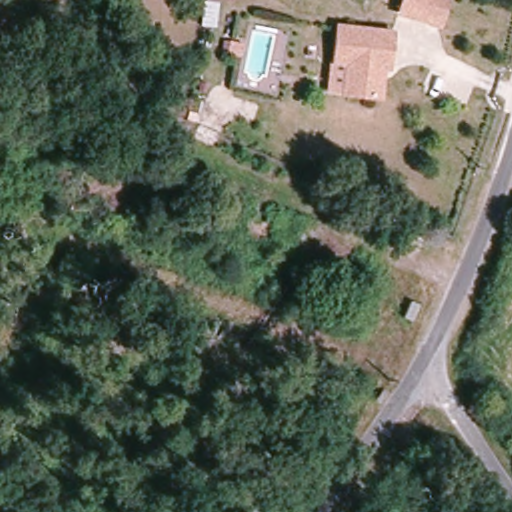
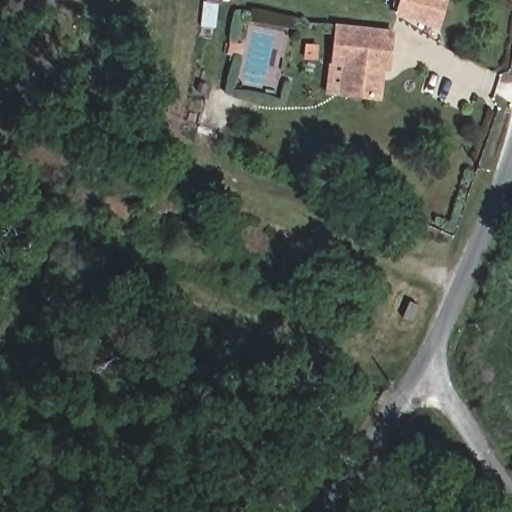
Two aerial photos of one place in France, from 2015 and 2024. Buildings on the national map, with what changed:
unchanged [(401,10),(404,0),(448,0),(440,27),(434,25),(400,15),(401,10)]
unchanged [(338,27),(393,34),(390,69),(383,68),(380,99),(344,96),(347,66),(334,64),(338,27)]
unchanged [(398,339),(389,353),(381,350),(389,334),(398,339)]

